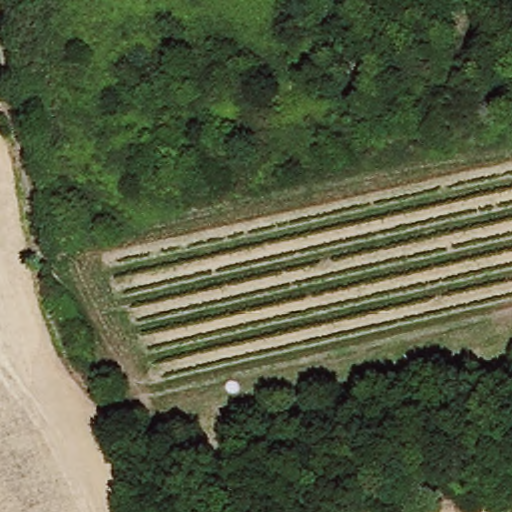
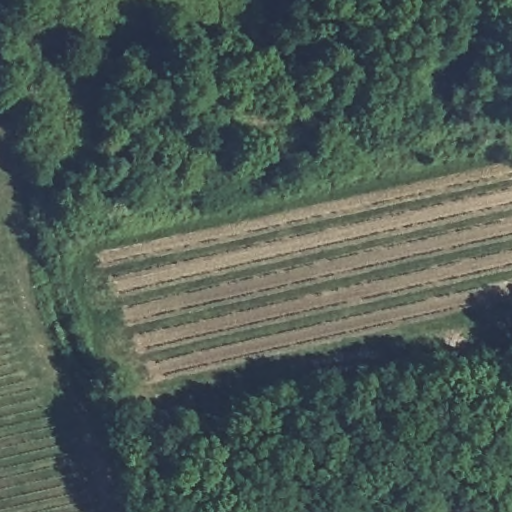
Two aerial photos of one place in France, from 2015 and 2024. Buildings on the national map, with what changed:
[]

